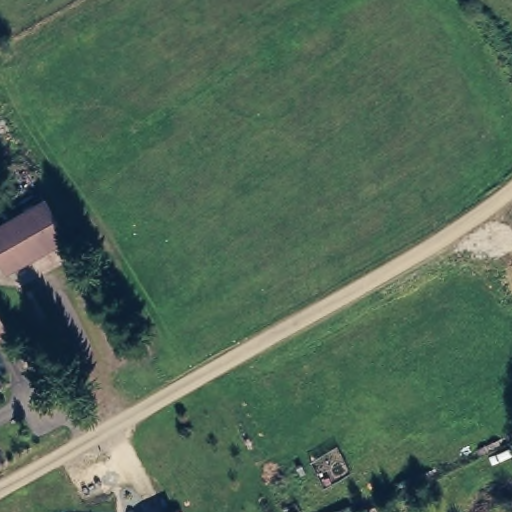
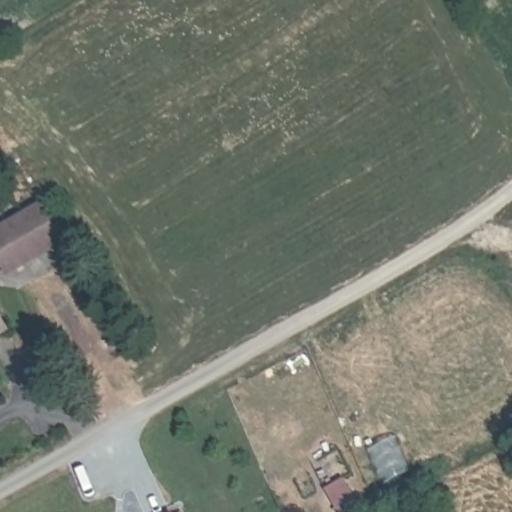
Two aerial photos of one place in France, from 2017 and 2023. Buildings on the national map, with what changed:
unchanged [(50,201),(70,238),(11,270),(0,249),(0,227),(50,201)]
unchanged [(10,335),(0,341),(0,314),(10,335)]
unchanged [(177,512),(181,510),(182,512),(177,512)]

